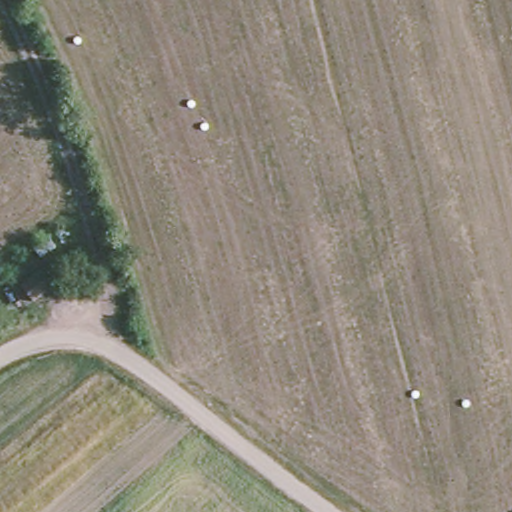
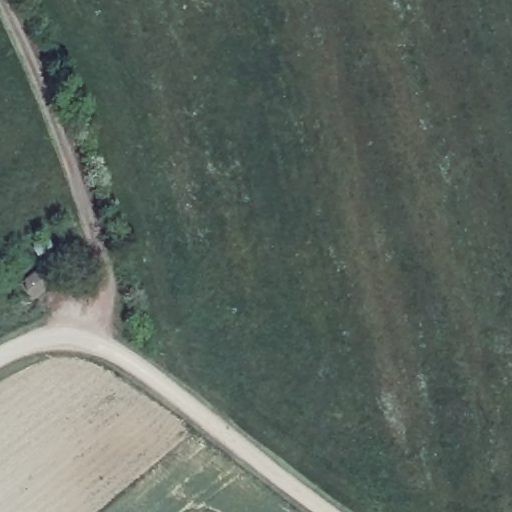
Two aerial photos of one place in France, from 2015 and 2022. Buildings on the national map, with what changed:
unchanged [(49,280),(27,297),(13,278),(35,261),(49,280)]

